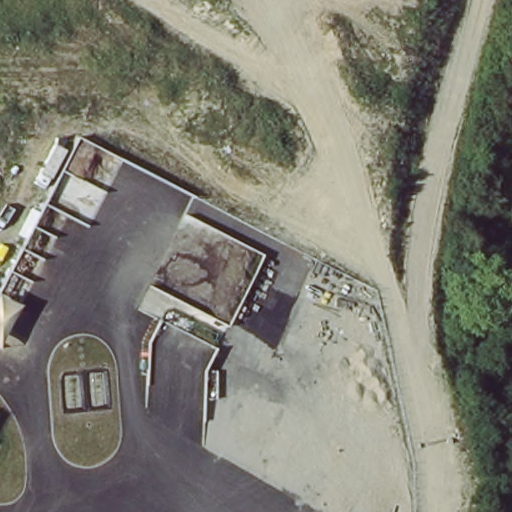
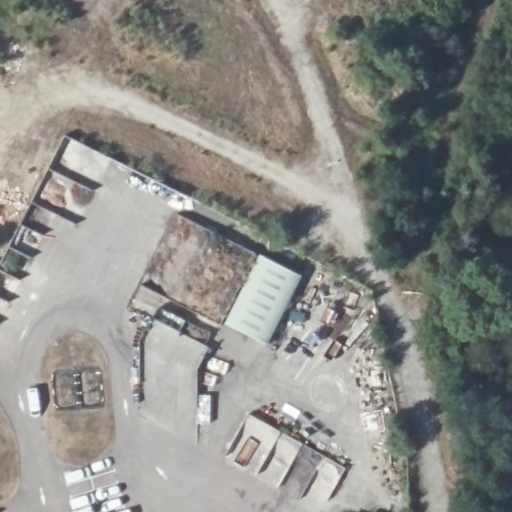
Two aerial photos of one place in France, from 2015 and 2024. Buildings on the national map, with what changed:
new [(260,253),(303,275),(269,344),(224,323),(260,253)]

